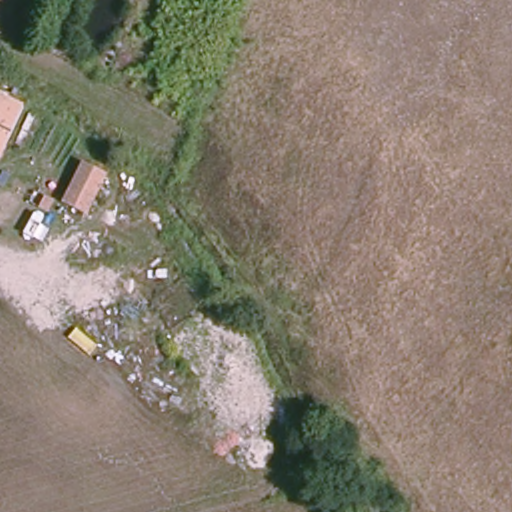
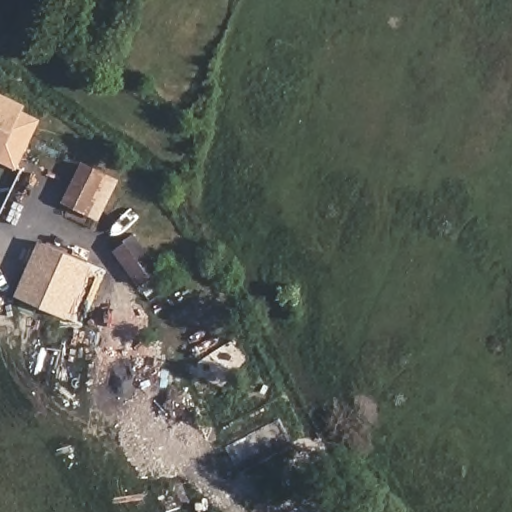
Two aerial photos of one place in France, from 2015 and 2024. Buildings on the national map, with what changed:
unchanged [(24,105),(0,157),(0,95),(24,105)]
unchanged [(90,216),(60,202),(80,161),(109,174),(90,216)]
new [(71,313),(17,286),(40,242),(94,269),(71,313)]

